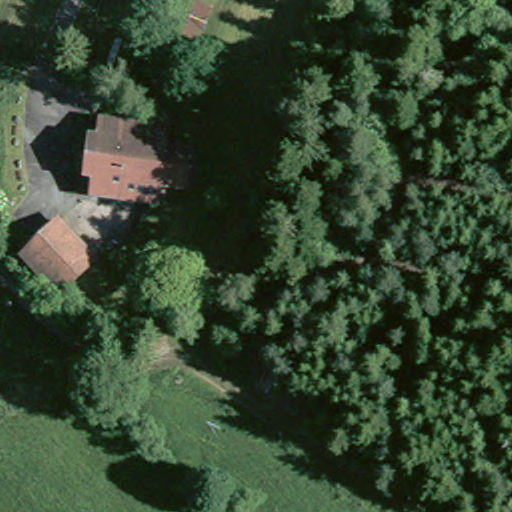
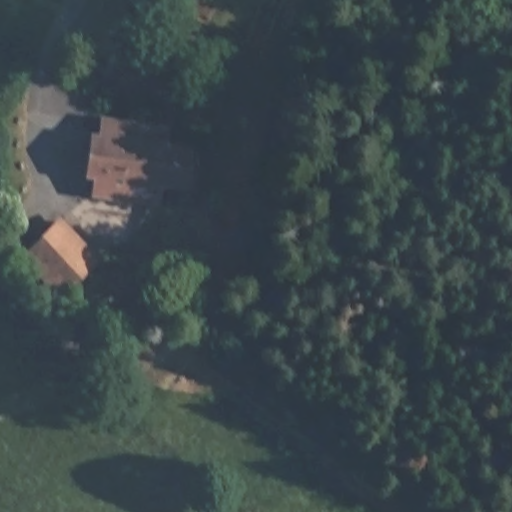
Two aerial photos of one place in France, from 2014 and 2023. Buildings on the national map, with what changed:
unchanged [(168,186),(167,203),(67,197),(67,177),(54,177),(56,144),(67,144),(68,124),(172,127),(171,145),(195,145),(192,186),(168,186)]
unchanged [(92,260),(63,295),(23,260),(52,227),(92,260)]

